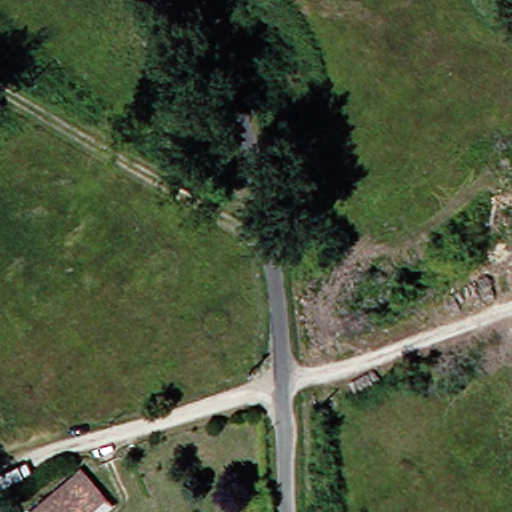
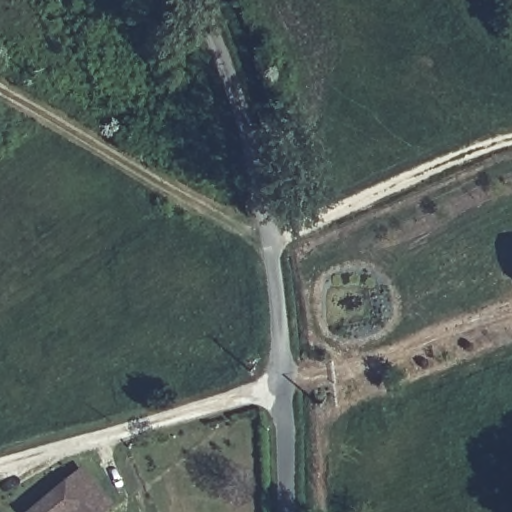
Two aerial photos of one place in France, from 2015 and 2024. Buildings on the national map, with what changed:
unchanged [(70,510),(68,512),(32,512),(30,509),(82,468),(113,504),(103,512),(72,512),(70,510)]

